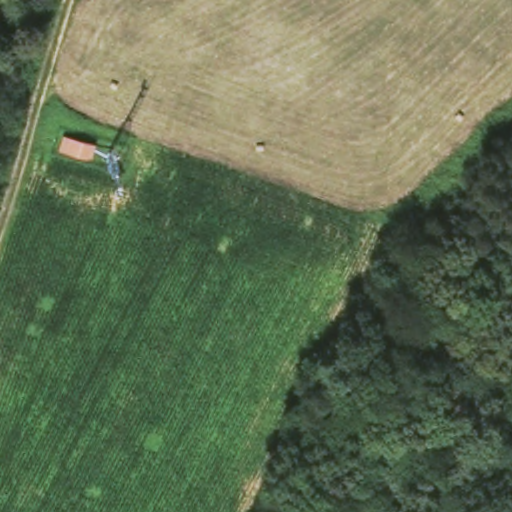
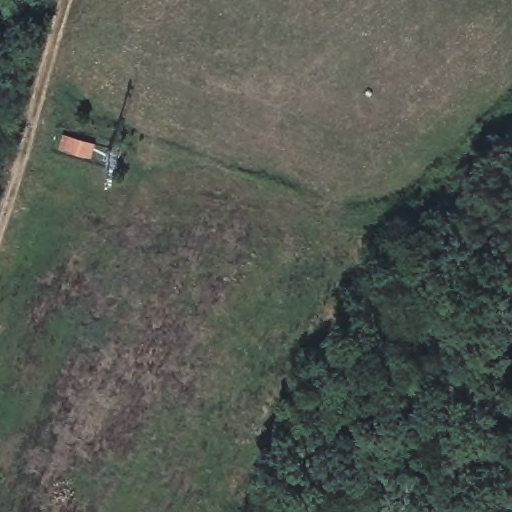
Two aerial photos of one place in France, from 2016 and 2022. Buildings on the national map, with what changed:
unchanged [(96,160),(59,150),(64,135),(102,141),(96,160)]

